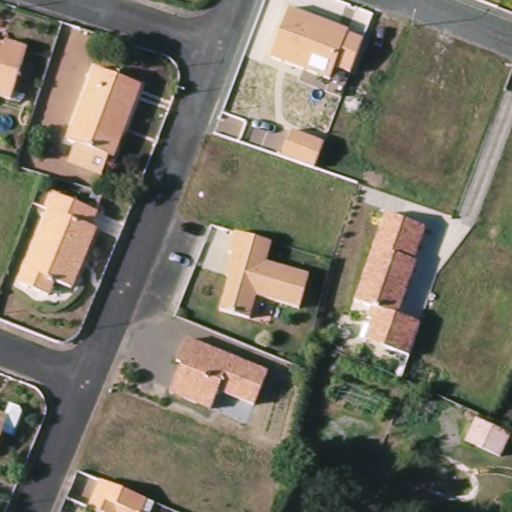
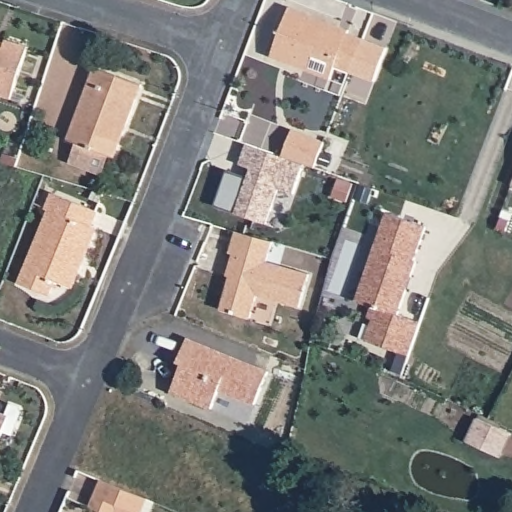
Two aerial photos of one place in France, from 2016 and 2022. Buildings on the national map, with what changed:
unchanged [(290,7),(350,30),(348,33),(362,39),(350,73),(335,67),(332,81),(271,57),(290,7)]
unchanged [(7,50),(9,41),(31,49),(14,99),(0,95),(0,48),(7,50)]
unchanged [(68,166),(76,147),(67,143),(94,72),(142,89),(115,162),(109,160),(101,178),(68,166)]
new [(257,220),(214,204),(227,169),(247,176),(251,167),(239,162),(246,142),(282,155),(292,129),(324,141),(314,167),(304,163),(293,192),(278,187),(270,210),(266,222),(257,220)]
unchanged [(49,215),(45,213),(52,197),(97,215),(91,229),(97,232),(72,292),(55,286),(50,300),(19,287),(49,215)]
unchanged [(372,318),(367,317),(371,306),(355,301),(382,212),(421,224),(411,258),(413,258),(408,275),(405,273),(401,286),(405,287),(397,313),(420,320),(410,353),(386,346),(366,340),(372,318)]
unchanged [(310,280),(300,312),(254,298),(247,321),(217,312),(227,278),(234,257),(231,257),(237,236),(273,246),(267,267),(310,280)]
unchanged [(216,391),(210,407),(170,392),(186,340),(267,370),(255,405),(216,391)]
unchanged [(9,407),(11,411),(2,434),(0,433),(0,403),(9,407)]
unchanged [(476,423),(512,438),(501,462),(466,446),(476,423)]
unchanged [(102,512),(87,506),(98,479),(147,498),(141,512),(102,512)]

